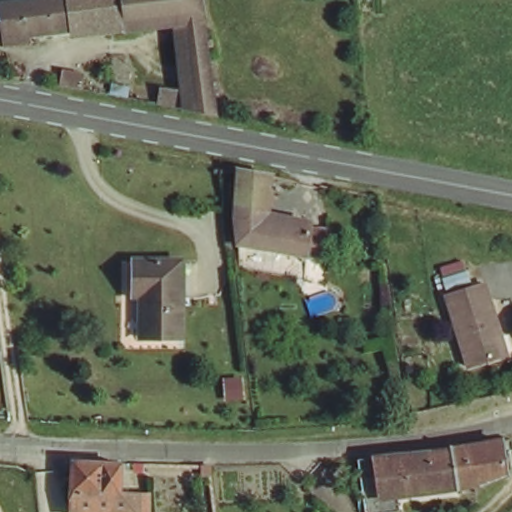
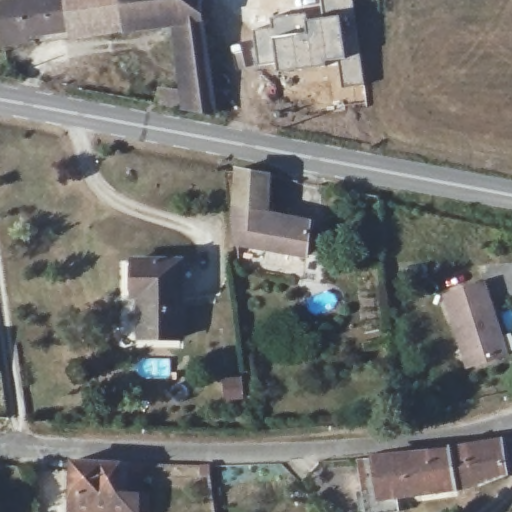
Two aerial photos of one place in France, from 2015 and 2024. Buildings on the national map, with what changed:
unchanged [(0,13),(0,0),(205,0),(220,114),(159,102),(161,84),(180,87),(171,27),(5,47),(0,13)]
new [(354,10),(341,12),(322,15),(321,0),(353,0),(354,10)]
new [(363,85),(342,88),(338,63),(276,74),(275,64),(256,67),(252,26),(271,23),(271,17),(305,12),(306,17),(322,15),(341,12),(347,55),(359,53),(363,85)]
unchanged [(267,173),(265,224),(309,231),(328,234),(324,257),(305,253),(235,241),(239,168),(267,173)]
unchanged [(181,337),(141,335),(142,291),(135,290),(136,255),(184,258),(181,337)]
unchanged [(499,356),(467,365),(446,295),(484,283),(499,334),(505,354),(499,356)]
unchanged [(421,463),(453,457),(451,446),(512,437),(512,452),(502,469),(456,485),(386,498),(381,457),(418,451),(421,463)]
unchanged [(70,512),(72,457),(124,461),(124,490),(152,491),(153,511),(141,512),(70,512)]
unchanged [(377,512),(366,512),(360,460),(381,457),(386,498),(388,511),(377,512)]

